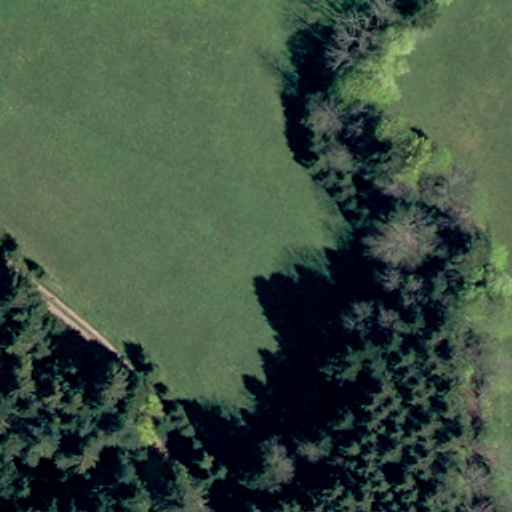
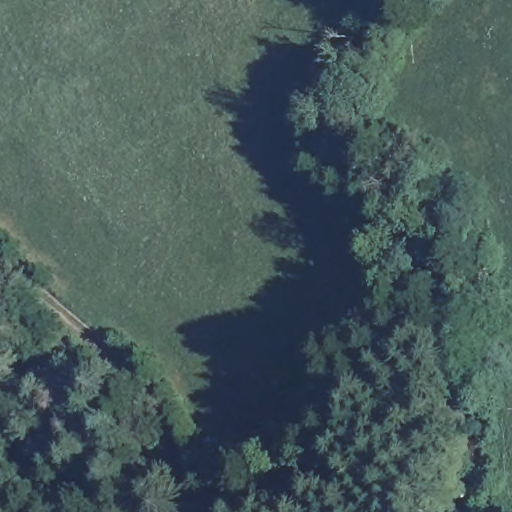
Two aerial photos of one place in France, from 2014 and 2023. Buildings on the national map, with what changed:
[]

